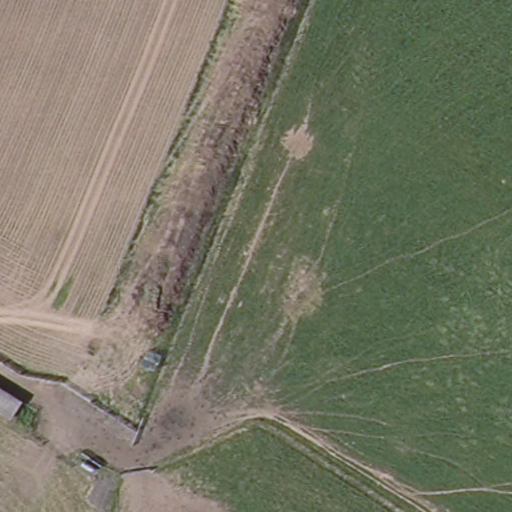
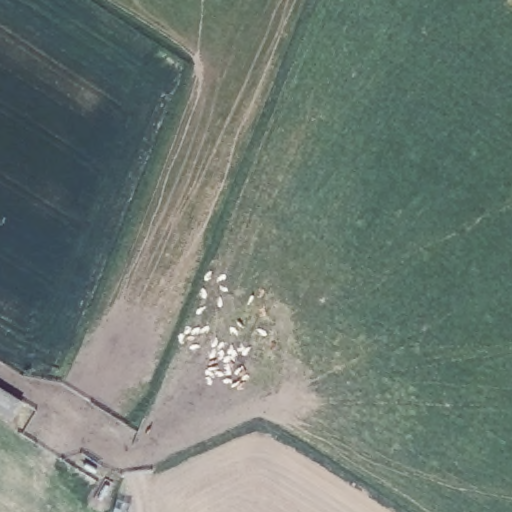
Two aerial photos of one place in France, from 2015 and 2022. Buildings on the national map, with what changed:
unchanged [(0,387),(25,404),(16,418),(0,409),(0,387)]

